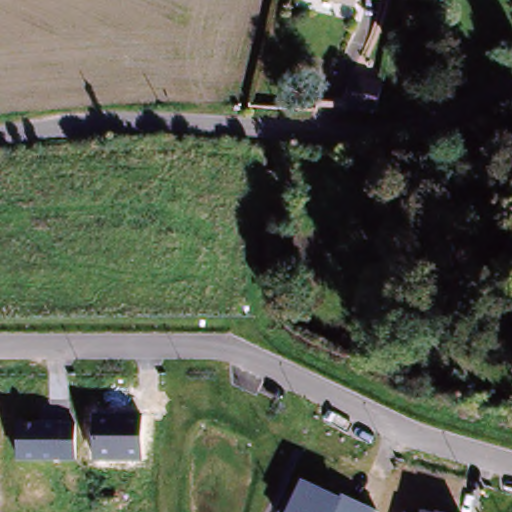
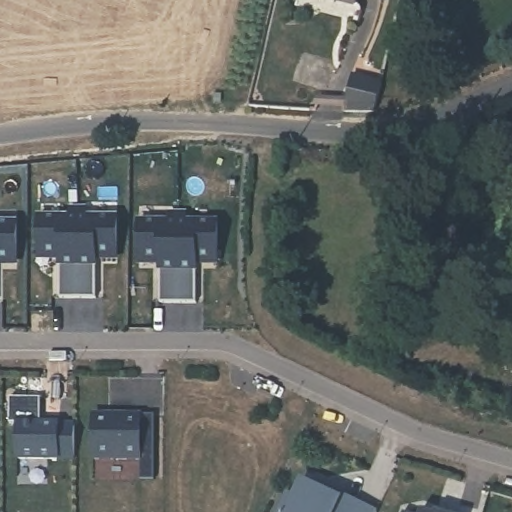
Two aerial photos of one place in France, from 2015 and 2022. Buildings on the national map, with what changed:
unchanged [(356,8),(322,0),(358,0),(356,8)]
new [(347,94),(352,75),(382,82),(375,111),(346,111),(347,94)]
new [(70,223),(70,215),(85,215),(86,223),(117,222),(118,260),(90,260),(90,268),(96,267),(97,305),(60,305),(60,268),(66,267),(66,260),(38,260),(38,223),(70,223)]
new [(171,223),(171,215),(187,215),(187,223),(219,223),(218,260),(191,260),(191,268),(197,268),(197,305),(160,305),(160,268),(167,268),(167,260),(139,260),(139,223),(171,223)]
new [(17,260),(0,260),(0,222),(18,222),(17,260)]
unchanged [(93,413),(142,415),(140,460),(93,460),(93,413)]
unchanged [(17,422),(75,422),(76,460),(17,460),(17,422)]
unchanged [(342,498),(343,495),(378,511),(378,512),(286,512),(300,480),(342,498)]

